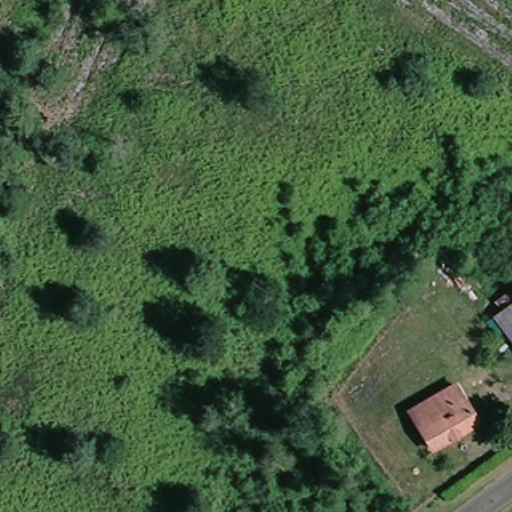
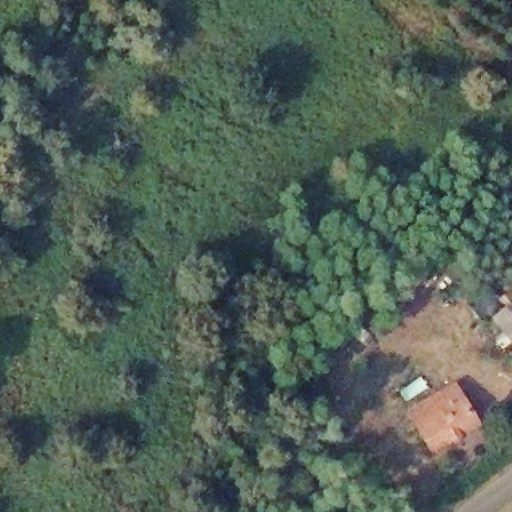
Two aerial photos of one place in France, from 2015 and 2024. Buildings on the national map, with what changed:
unchanged [(512,365),(493,345),(486,328),(506,311),(512,318),(512,365)]
unchanged [(444,457),(431,441),(411,415),(448,386),(468,413),(481,429),(444,457)]

